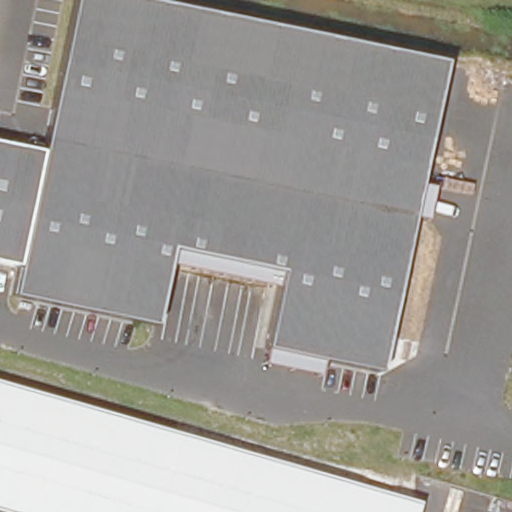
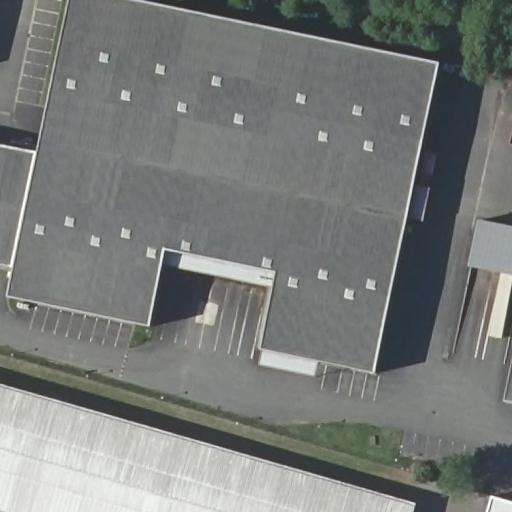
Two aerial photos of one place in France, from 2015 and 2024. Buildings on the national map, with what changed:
unchanged [(69,0),(136,0),(440,62),(374,373),(261,348),(277,272),(164,248),(146,323),(9,295),(14,266),(0,263),(0,143),(40,151),(69,0)]
new [(512,227),(512,274),(471,266),(480,220),(512,227)]
new [(506,402),(512,370),(512,403),(506,402)]
unchanged [(0,499),(0,395),(404,512),(44,512),(0,499)]

